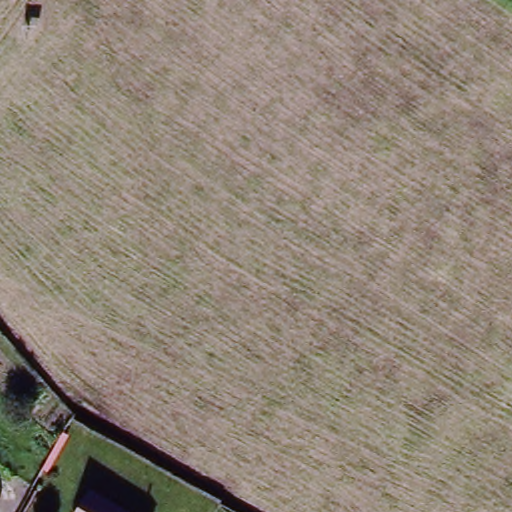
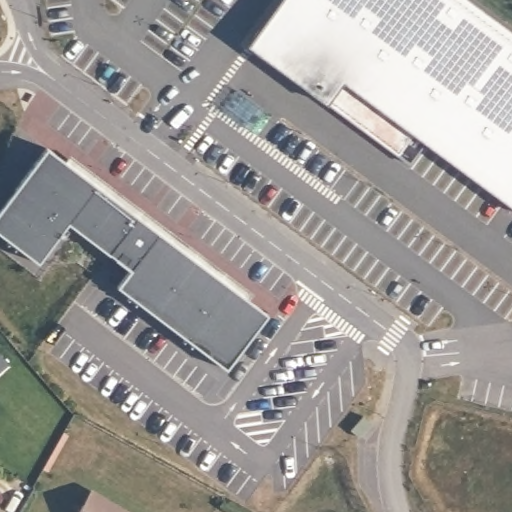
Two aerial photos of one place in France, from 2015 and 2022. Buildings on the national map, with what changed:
new [(512,33),(512,209),(412,135),(398,158),(329,101),(326,105),(247,46),(280,0),(467,0),(512,33)]
new [(235,91),(263,111),(249,130),(221,110),(235,91)]
new [(65,171),(249,308),(268,323),(227,377),(117,295),(130,278),(69,232),(39,272),(0,243),(0,218),(47,157),(65,171)]
new [(70,164),(254,302),(249,308),(65,171),(70,164)]
unchanged [(127,512),(79,512),(90,490),(127,512)]

